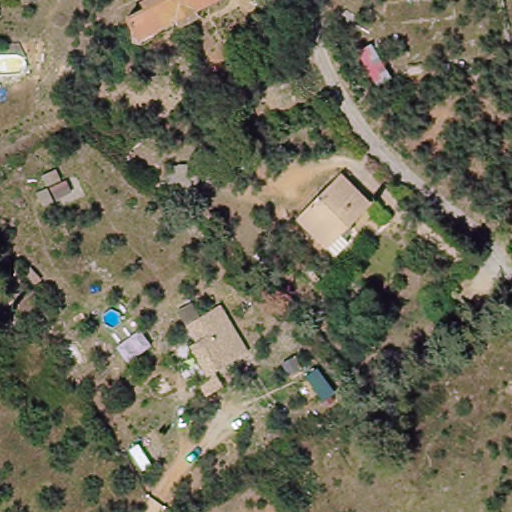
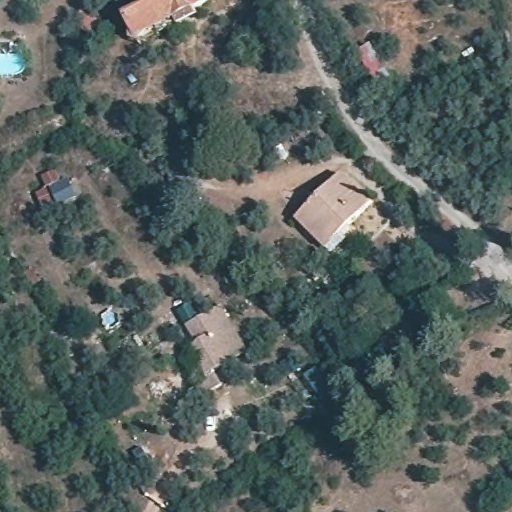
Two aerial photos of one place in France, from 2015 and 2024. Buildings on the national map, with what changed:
unchanged [(200,12),(203,18),(183,29),(180,24),(176,26),(178,31),(156,43),(153,37),(143,42),(132,19),(148,10),(144,0),(145,0),(223,0),(200,12)]
unchanged [(355,52),(369,43),(389,79),(377,87),(355,52)]
unchanged [(171,194),(173,156),(189,157),(190,167),(205,168),(205,183),(205,197),(189,196),(171,194)]
unchanged [(33,195),(44,190),(38,177),(55,168),(67,195),(40,209),(33,195)]
unchanged [(373,210),(325,257),(295,225),(343,178),(373,210)]
unchanged [(1,231),(0,232),(0,229),(1,231)]
unchanged [(245,359),(215,375),(221,388),(200,397),(195,386),(202,379),(185,345),(191,341),(183,325),(215,310),(245,359)]

